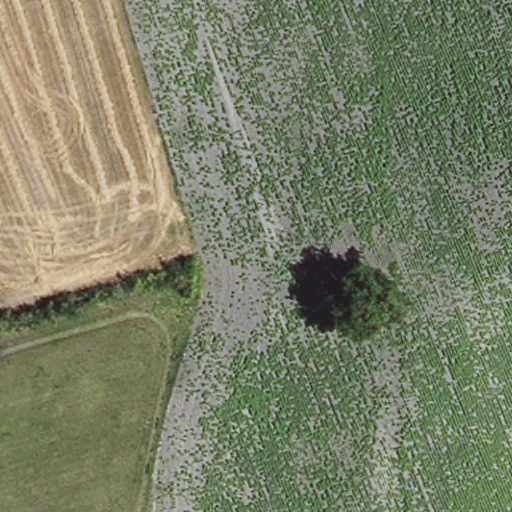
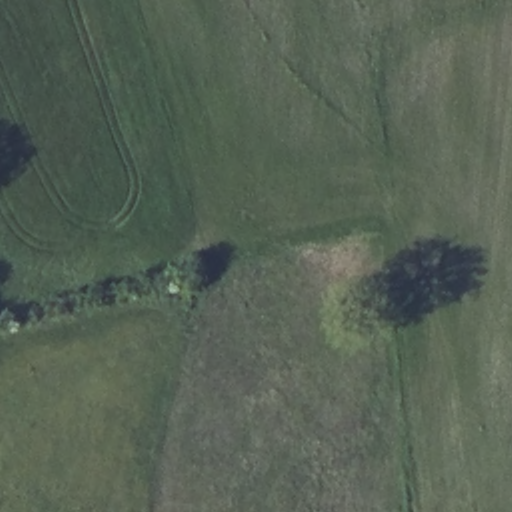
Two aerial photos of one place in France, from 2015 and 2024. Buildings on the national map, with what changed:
[]

